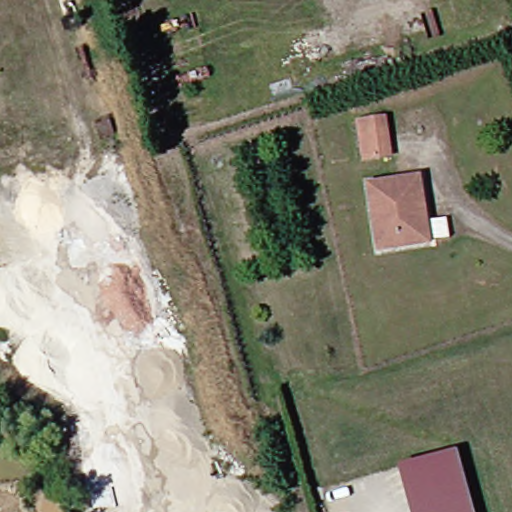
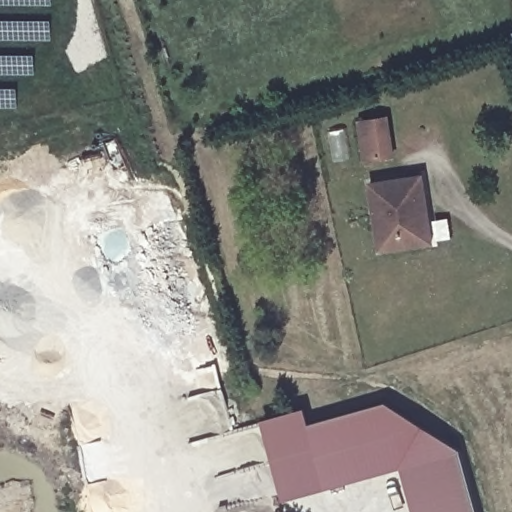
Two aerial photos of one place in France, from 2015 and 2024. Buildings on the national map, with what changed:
unchanged [(379,120),(382,159),(353,161),(348,122),(379,120)]
unchanged [(416,177),(425,245),(369,252),(360,184),(416,177)]
new [(385,401),(460,452),(403,468),(324,489),(307,425),(385,401)]
new [(282,499),(261,419),(303,408),(307,425),(324,489),(282,499)]
unchanged [(477,512),(415,512),(403,468),(460,452),(477,512)]

